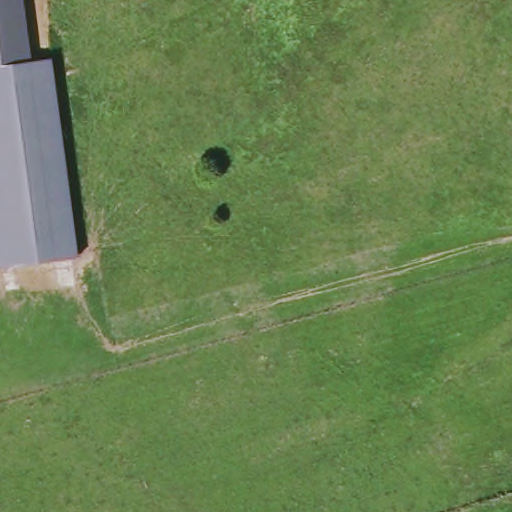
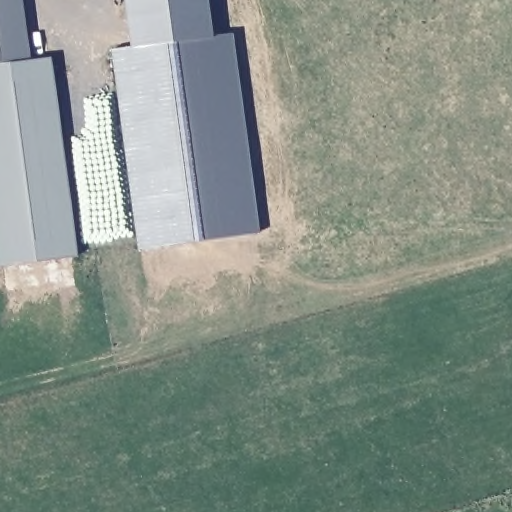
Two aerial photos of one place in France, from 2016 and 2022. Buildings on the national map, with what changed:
unchanged [(53,55),(78,255),(0,263),(0,0),(25,0),(33,58),(53,55)]
new [(213,37),(234,34),(259,235),(138,250),(111,51),(130,49),(124,0),(209,0),(213,37)]

